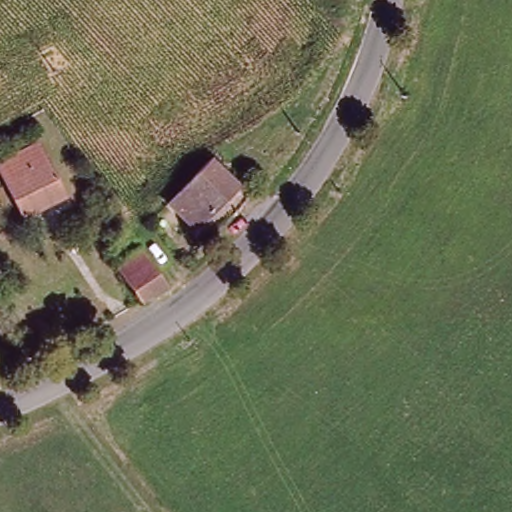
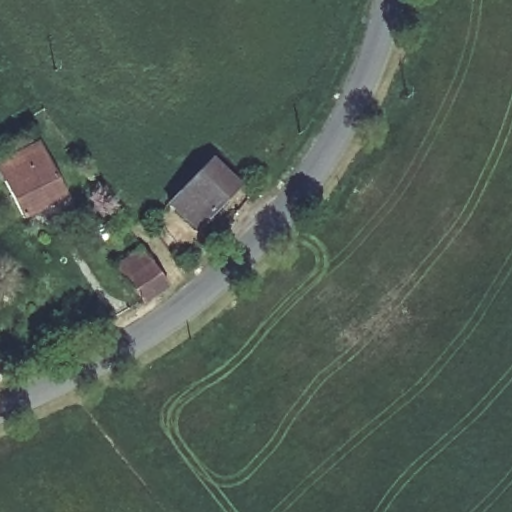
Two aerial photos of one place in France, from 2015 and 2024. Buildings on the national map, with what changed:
unchanged [(5,162),(51,142),(68,182),(22,201),(5,162)]
unchanged [(235,182),(200,217),(175,191),(210,157),(235,182)]
unchanged [(124,266),(153,246),(170,266),(140,290),(124,266)]

